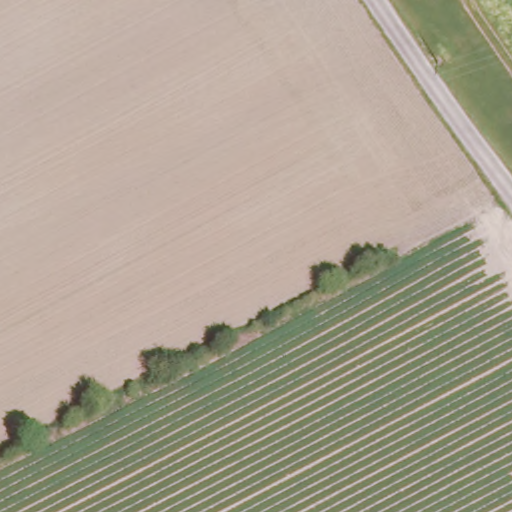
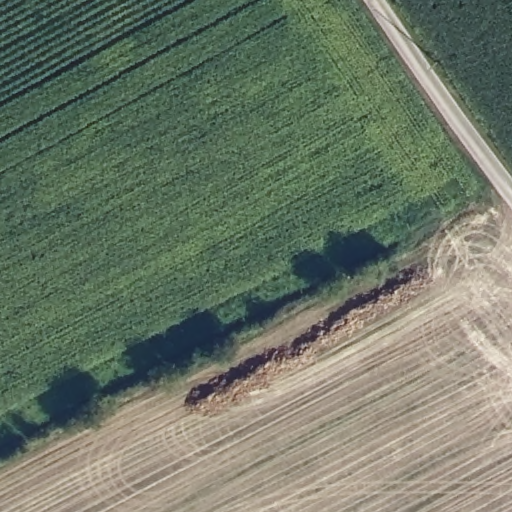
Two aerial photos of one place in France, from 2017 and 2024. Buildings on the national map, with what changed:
unchanged [(489,210),(486,204),(491,201),(494,207),(489,210)]

